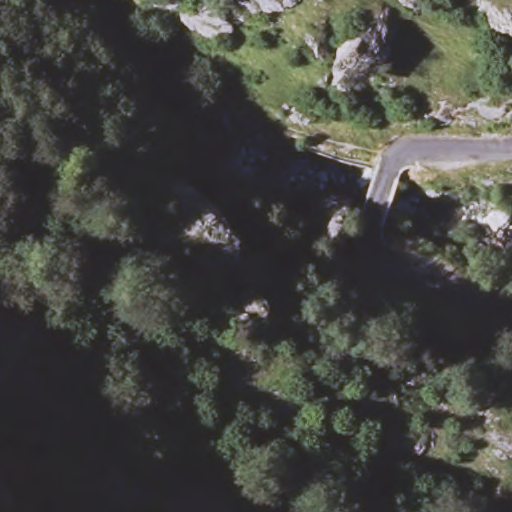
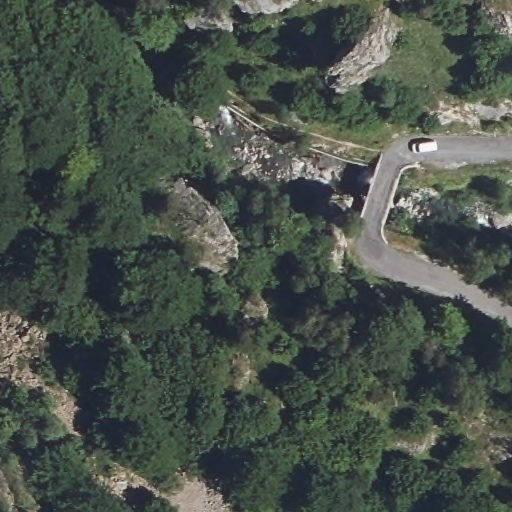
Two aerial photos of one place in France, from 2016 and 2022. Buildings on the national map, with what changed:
[]

